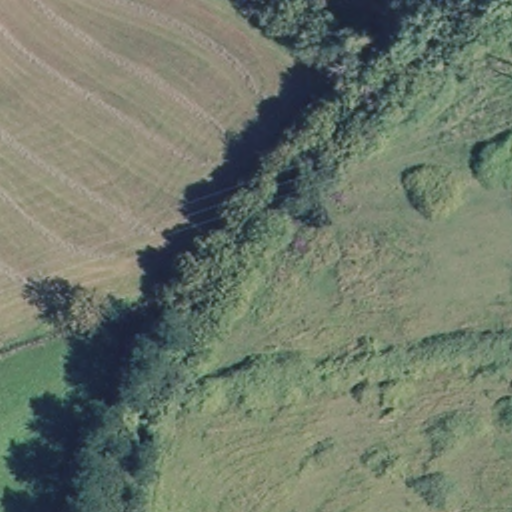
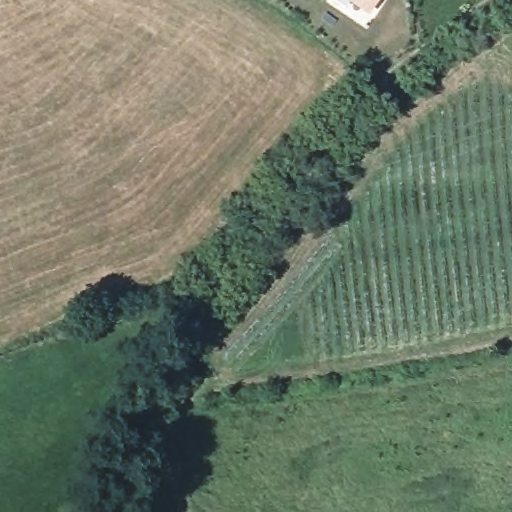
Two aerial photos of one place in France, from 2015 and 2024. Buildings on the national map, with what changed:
new [(345,0),(380,0),(370,16),(345,0)]

